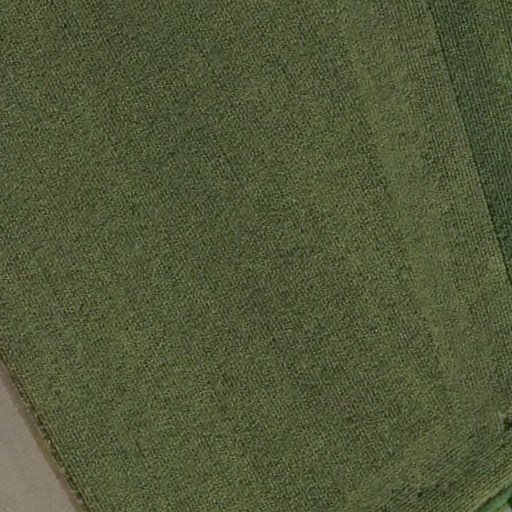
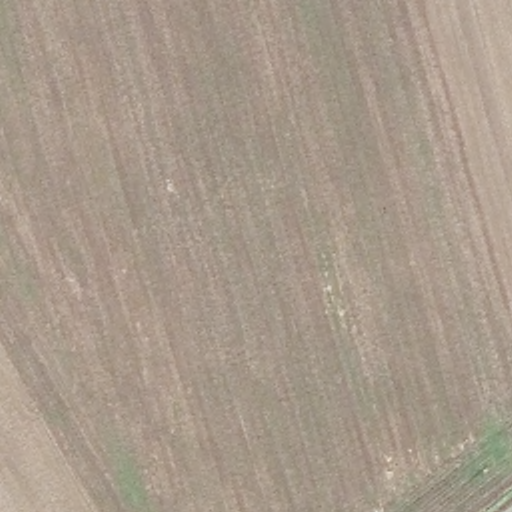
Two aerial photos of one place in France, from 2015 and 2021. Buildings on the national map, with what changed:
[]

